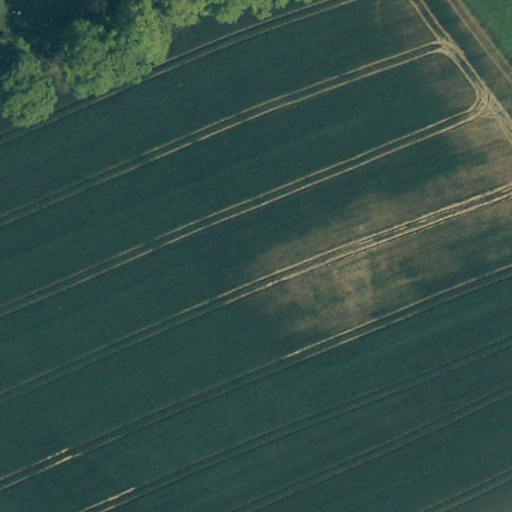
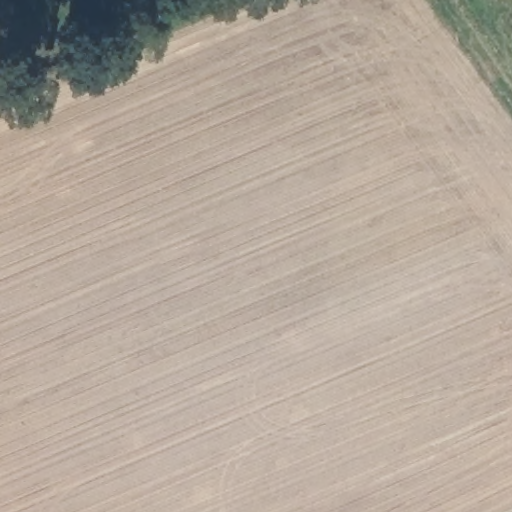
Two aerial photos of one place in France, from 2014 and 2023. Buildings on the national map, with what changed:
[]

